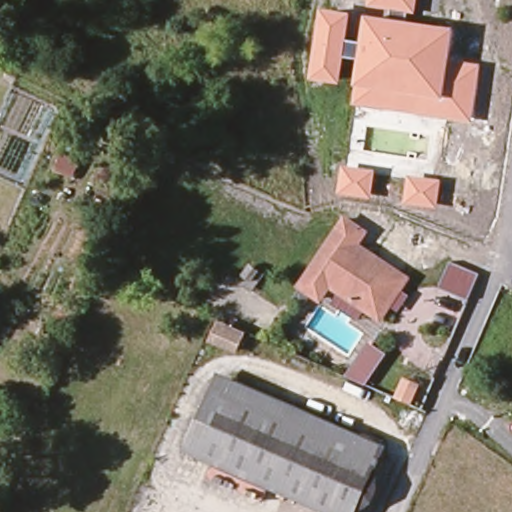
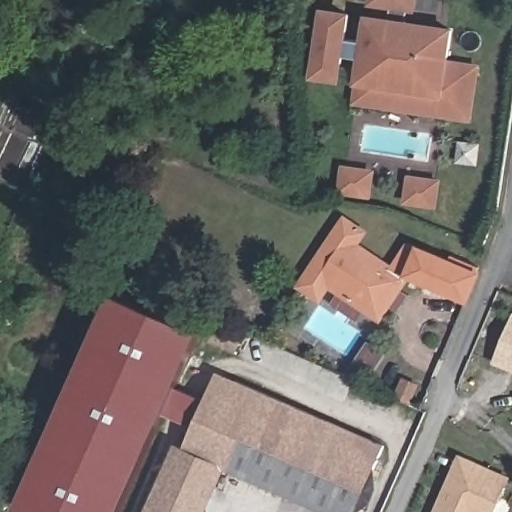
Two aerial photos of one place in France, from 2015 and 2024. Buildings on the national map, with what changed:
unchanged [(456,26),(451,60),(481,64),(472,122),(352,104),(356,84),(360,58),(346,56),(342,82),(312,78),(323,8),(352,12),(348,39),(362,41),(367,14),(390,17),(391,9),(368,5),(369,0),(417,0),(416,13),(408,12),(410,21),(456,26)]
unchanged [(372,198),(337,194),(342,165),(376,170),(372,198)]
unchanged [(437,208),(404,203),(408,175),(441,179),(437,208)]
unchanged [(381,319),(332,291),(322,305),(304,292),(342,235),(360,247),(355,258),(402,287),(381,319)]
unchanged [(472,294),(446,282),(454,263),(456,258),(483,271),(481,275),(472,294)]
new [(199,429),(165,414),(121,512),(28,512),(18,507),(115,291),(202,330),(178,386),(212,401),(199,429)]
new [(512,317),(512,372),(492,364),(512,317)]
unchanged [(246,333),(234,355),(209,345),(217,322),(246,333)]
unchanged [(350,375),(375,340),(388,349),(368,383),(350,375)]
unchanged [(191,448),(224,374),(382,442),(354,512),(314,512),(226,474),(187,457),(191,448)]
new [(177,443),(191,448),(187,457),(226,474),(209,512),(146,512),(177,443)]
new [(459,453),(512,477),(512,479),(497,512),(433,512),(459,453)]

